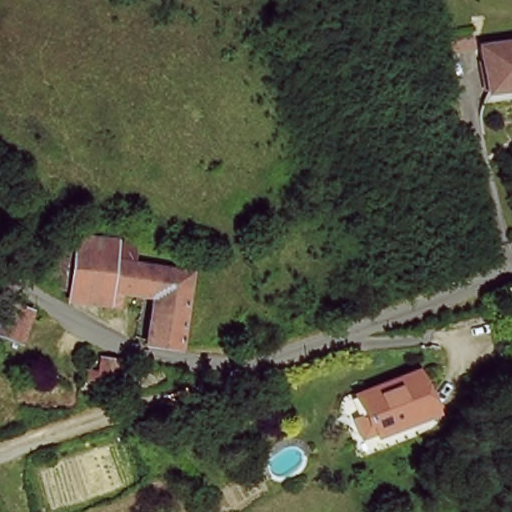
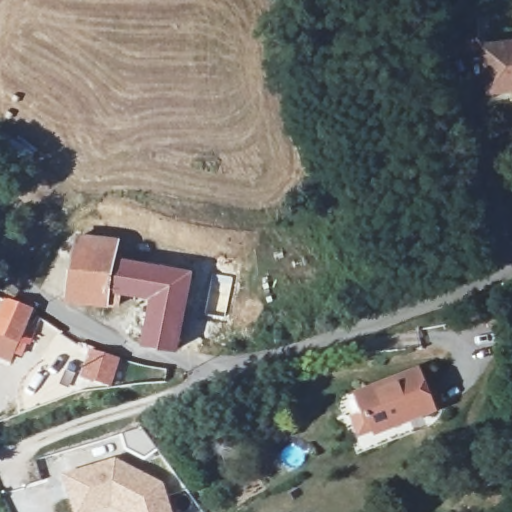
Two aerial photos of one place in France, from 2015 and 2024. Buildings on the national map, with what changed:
unchanged [(485,53),(512,46),(512,95),(498,98),(485,53)]
unchanged [(113,289),(111,301),(73,296),(83,235),(122,240),(119,255),(113,289)]
unchanged [(150,343),(159,298),(113,289),(119,255),(194,269),(181,348),(150,343)]
unchanged [(27,313),(17,341),(0,335),(0,319),(5,305),(27,313)]
unchanged [(112,371),(108,394),(92,391),(97,367),(112,371)]
unchanged [(433,411),(370,433),(362,414),(343,415),(340,401),(346,392),(350,390),(363,394),(420,374),(433,411)]
new [(141,424),(158,450),(143,461),(123,450),(119,434),(141,424)]
new [(117,460),(165,485),(172,512),(116,512),(112,510),(104,512),(75,512),(63,477),(117,460)]

